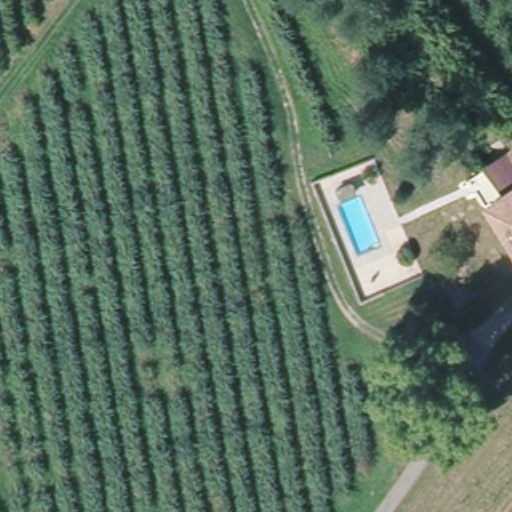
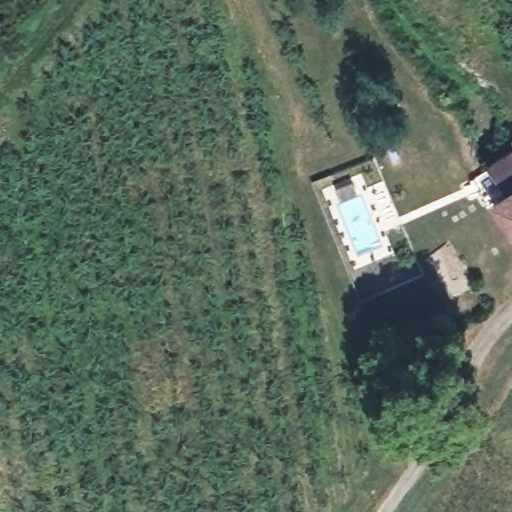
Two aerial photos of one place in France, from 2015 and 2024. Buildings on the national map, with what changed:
unchanged [(509,140),(512,138),(512,145),(509,140)]
unchanged [(498,206),(512,196),(490,164),(512,150),(512,226),(498,206)]

